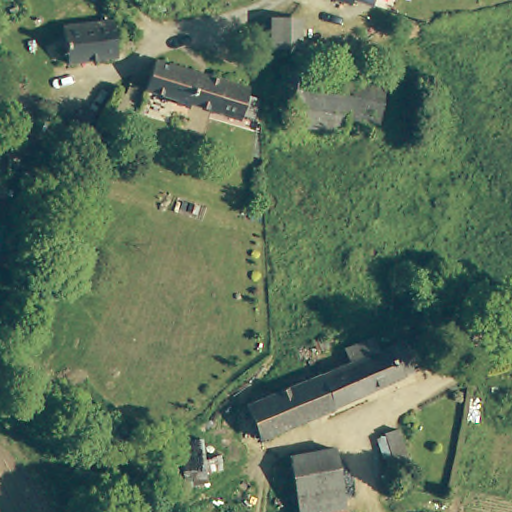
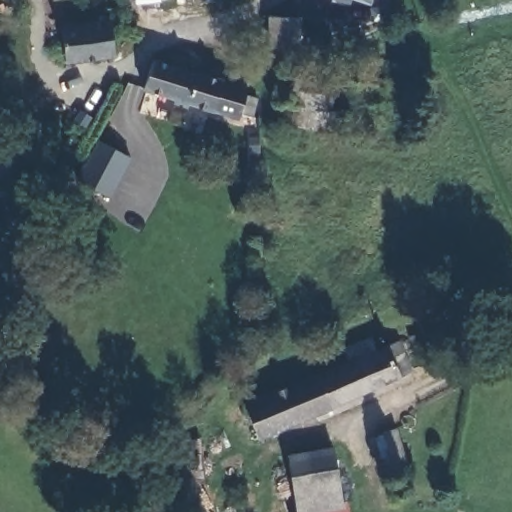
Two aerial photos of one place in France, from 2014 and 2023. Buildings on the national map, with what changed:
unchanged [(352,0),(349,6),(328,0),(352,0)]
unchanged [(296,18),(295,43),(295,46),(269,45),(271,17),(296,18)]
unchanged [(62,61),(57,27),(107,21),(111,52),(62,61)]
unchanged [(150,64),(186,77),(187,74),(248,95),(238,121),(182,105),(181,109),(139,92),(150,64)]
unchanged [(376,111),(296,106),(291,115),(285,111),(286,105),(279,104),(281,70),(378,76),(376,111)]
unchanged [(376,111),(373,136),(293,130),(296,106),(376,111)]
unchanged [(26,114),(37,120),(37,129),(31,130),(31,134),(0,136),(0,117),(26,114)]
new [(111,197),(77,177),(83,163),(85,164),(99,140),(131,158),(111,197)]
unchanged [(1,177),(0,177),(0,153),(1,177)]
unchanged [(246,408),(274,395),(345,365),(344,365),(338,351),(367,338),(372,350),(391,343),(397,341),(412,373),(261,440),(252,420),(246,408)]
unchanged [(163,449),(182,446),(184,459),(187,487),(168,490),(165,465),(163,449)]
unchanged [(288,490),(282,457),(333,448),(337,467),(288,490)]
unchanged [(337,467),(346,505),(296,512),(293,512),(288,490),(337,467)]
unchanged [(346,505),(347,512),(296,512),(346,505)]

